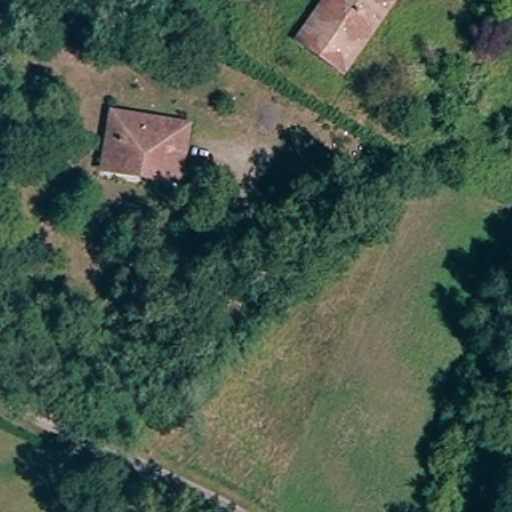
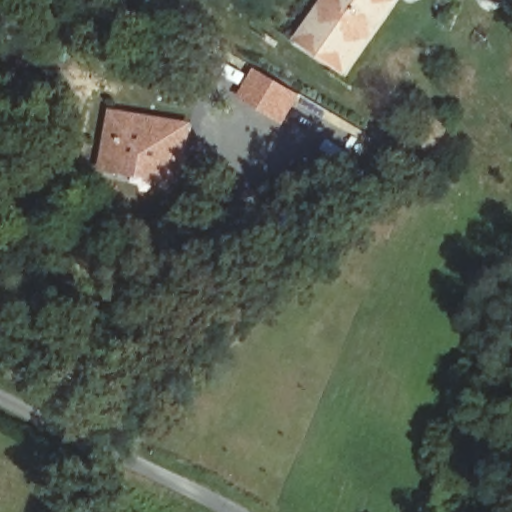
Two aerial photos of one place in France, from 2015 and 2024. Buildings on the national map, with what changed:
unchanged [(387,0),(389,2),(342,69),(302,42),(332,0),(387,0)]
new [(283,125),(237,98),(250,77),(263,85),(268,77),(300,96),(283,125)]
unchanged [(104,172),(113,115),(194,130),(183,184),(162,181),(135,176),(104,172)]

